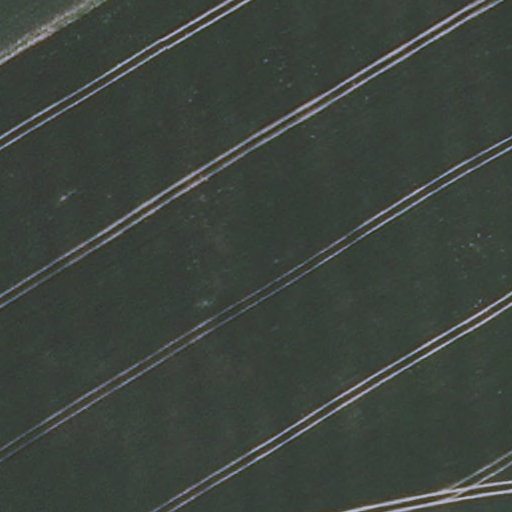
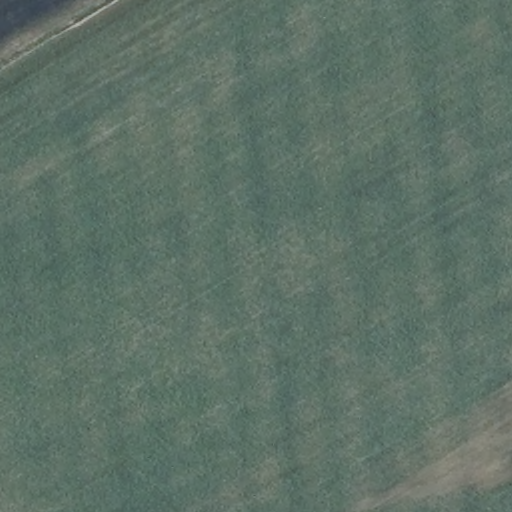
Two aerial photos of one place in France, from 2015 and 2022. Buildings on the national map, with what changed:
[]

